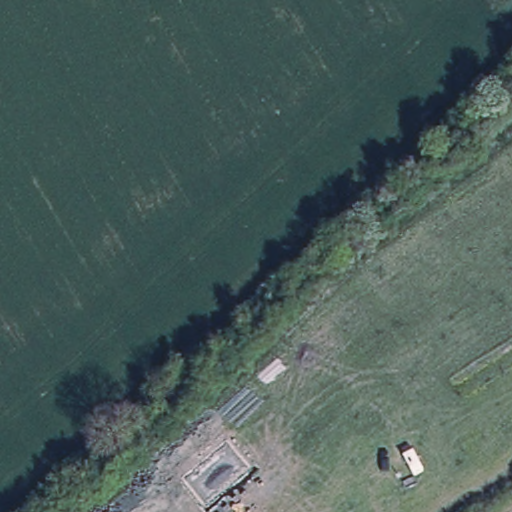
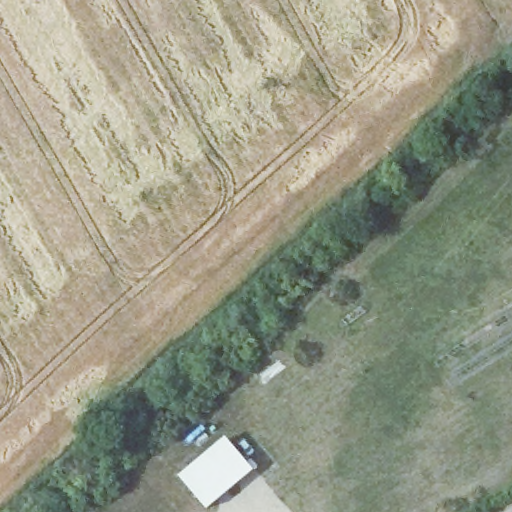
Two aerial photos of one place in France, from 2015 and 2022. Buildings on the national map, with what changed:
new [(254,468),(207,508),(180,475),(226,436),(254,468)]

